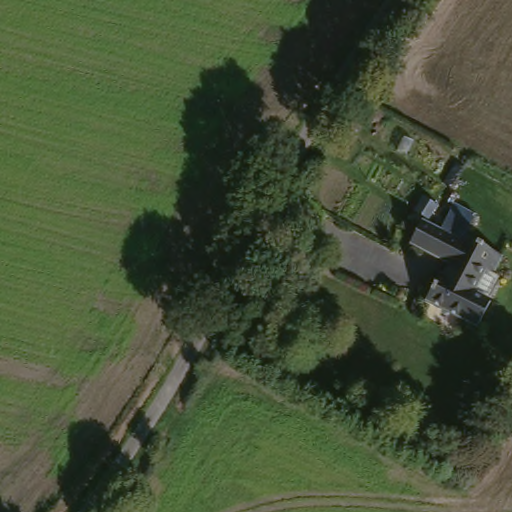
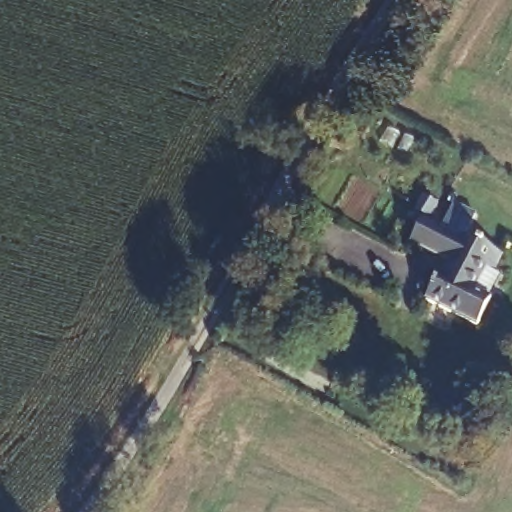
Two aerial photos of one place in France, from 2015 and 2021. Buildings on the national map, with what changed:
unchanged [(473,331),(419,300),(437,265),(394,237),(419,194),(438,205),(428,224),(441,231),(449,211),(473,222),(467,241),(481,251),(466,295),(484,305),(473,331)]

